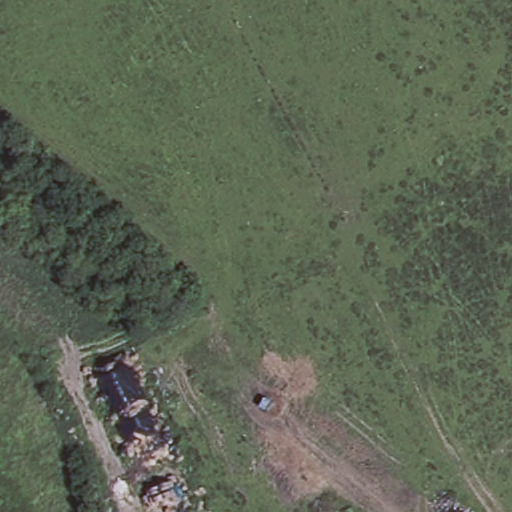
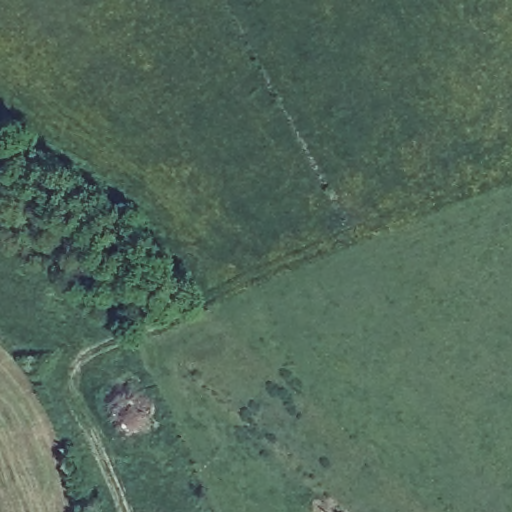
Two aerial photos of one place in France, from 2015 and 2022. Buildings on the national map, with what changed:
[]

